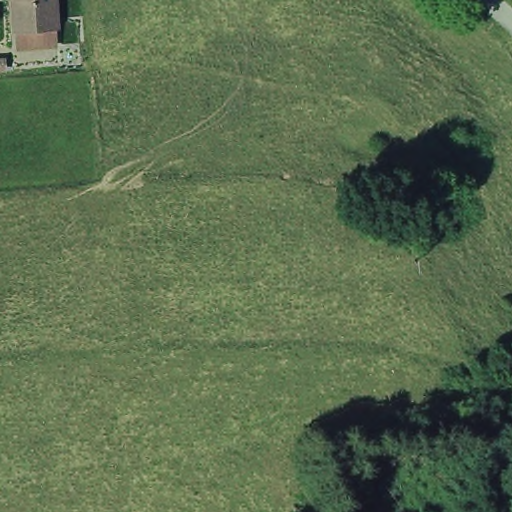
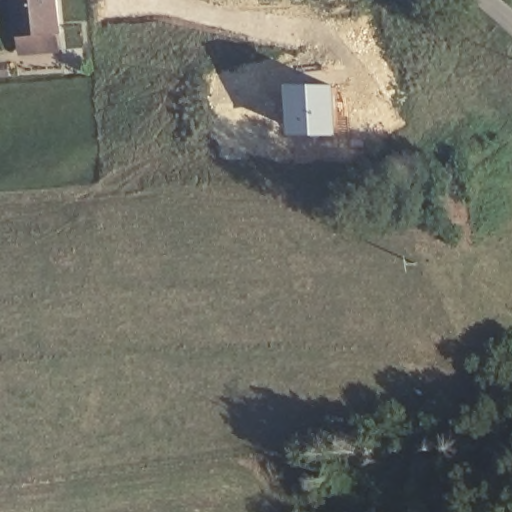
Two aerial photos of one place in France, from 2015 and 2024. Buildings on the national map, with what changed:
unchanged [(25,35),(24,35),(22,0),(62,0),(65,31),(64,31),(65,50),(27,53),(25,35)]
new [(293,84),(342,85),(342,136),(293,135),(293,84)]

